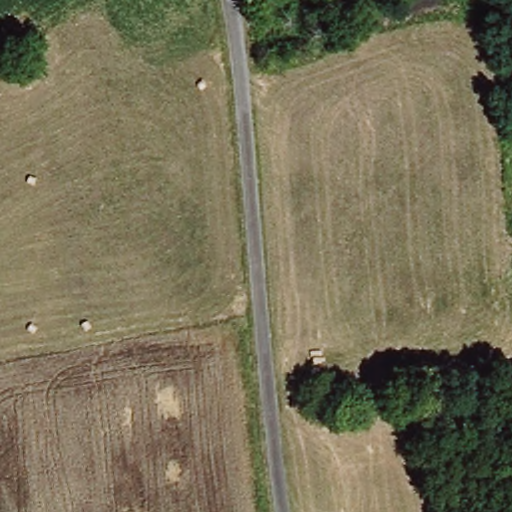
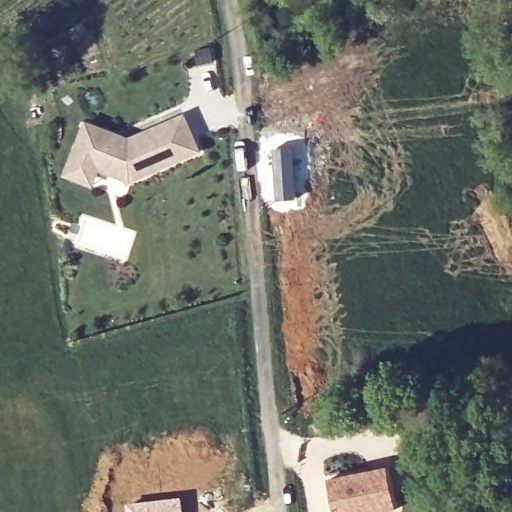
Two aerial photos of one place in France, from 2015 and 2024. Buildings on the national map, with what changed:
new [(128,137),(185,112),(202,151),(131,184),(100,172),(93,188),(63,176),(85,121),(128,137)]
new [(377,512),(337,512),(330,479),(390,467),(399,507),(377,512)]
new [(184,512),(126,512),(125,502),(182,496),(184,512)]

